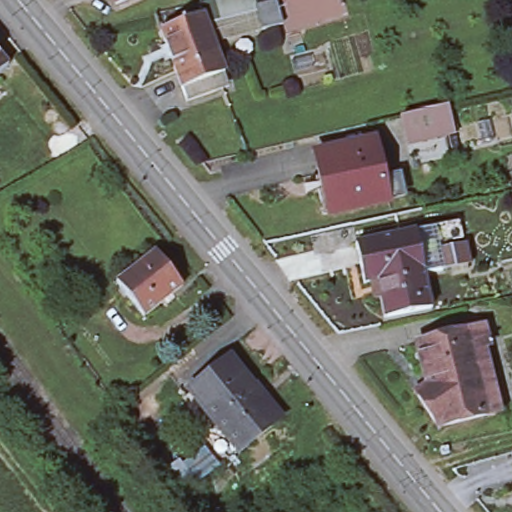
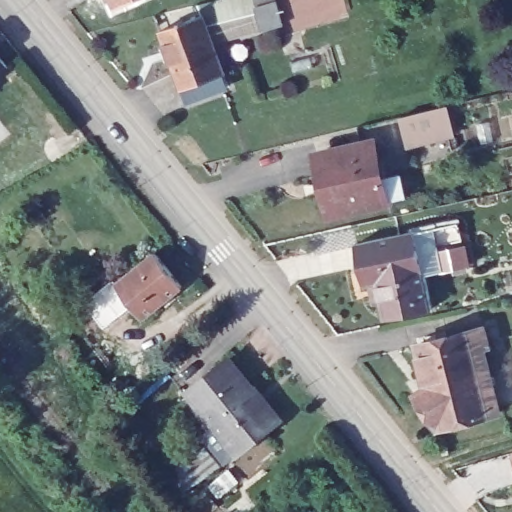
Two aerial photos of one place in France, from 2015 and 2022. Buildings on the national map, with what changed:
unchanged [(113,0),(133,0),(116,7),(113,0)]
unchanged [(277,0),(284,25),(265,31),(214,43),(204,14),(200,4),(214,0),(277,0)]
unchanged [(187,102),(182,89),(160,30),(204,14),(214,43),(224,74),(220,76),(224,87),(187,102)]
unchanged [(0,73),(0,54),(10,65),(0,73)]
unchanged [(450,103),(457,131),(405,142),(399,116),(450,103)]
unchanged [(402,197),(389,201),(325,214),(312,154),(370,141),(378,180),(384,179),(397,176),(402,197)]
unchanged [(430,227),(435,251),(459,245),(464,266),(420,275),(412,232),(430,227)]
unchanged [(412,232),(420,275),(427,308),(380,318),(372,282),(360,285),(351,245),(412,232)]
unchanged [(157,251),(185,286),(144,317),(117,282),(157,251)]
unchanged [(490,327),(494,346),(490,347),(505,412),(445,428),(421,395),(433,387),(422,344),(490,327)]
unchanged [(191,390),(230,358),(255,391),(251,394),(275,424),(240,452),(239,450),(229,458),(207,432),(217,423),(191,390)]

